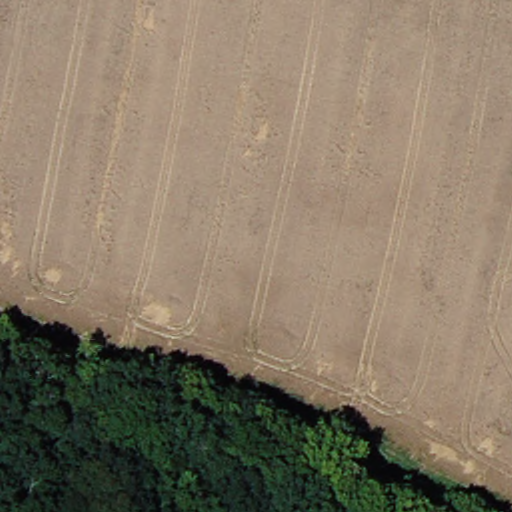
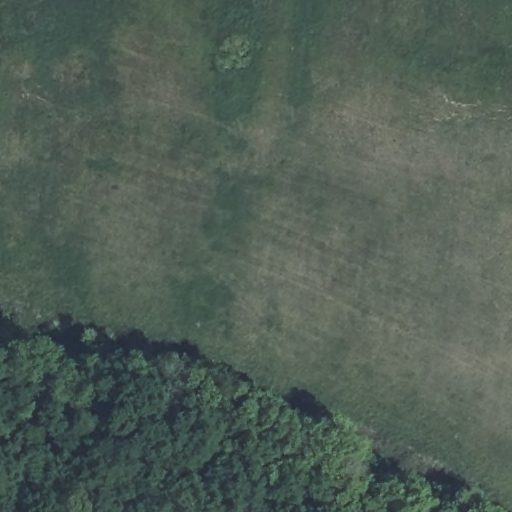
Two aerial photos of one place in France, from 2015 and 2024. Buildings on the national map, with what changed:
[]

